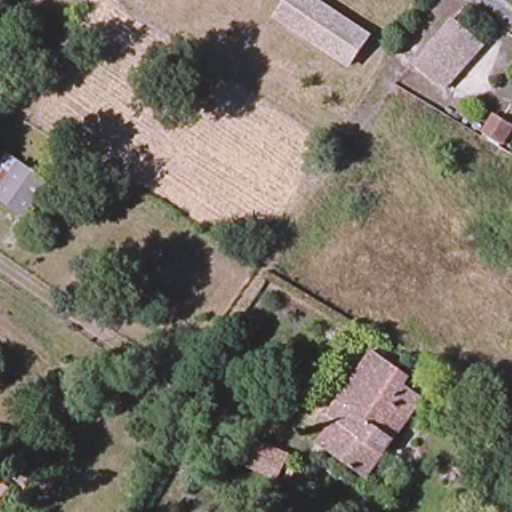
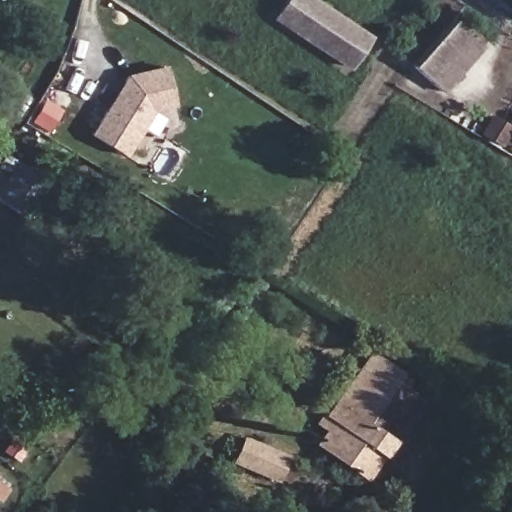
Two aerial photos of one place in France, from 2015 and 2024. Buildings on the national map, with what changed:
unchanged [(291,0),(308,0),(369,41),(347,74),(273,26),(291,0)]
unchanged [(484,46),(442,93),(413,66),(454,19),(484,46)]
new [(154,110),(128,156),(92,134),(128,74),(168,65),(175,106),(154,110)]
unchanged [(480,134),(489,117),(512,129),(502,146),(480,134)]
unchanged [(17,168),(0,191),(0,166),(5,159),(17,168)]
unchanged [(0,195),(19,168),(49,190),(25,222),(0,204),(0,195)]
unchanged [(309,446),(319,434),(312,429),(366,356),(403,384),(399,390),(418,405),(359,482),(309,446)]
unchanged [(294,459),(282,487),(236,468),(248,440),(294,459)]
unchanged [(0,495),(0,482),(6,487),(0,495)]

